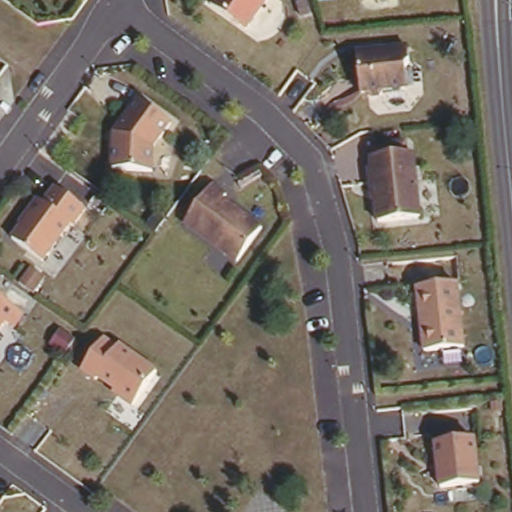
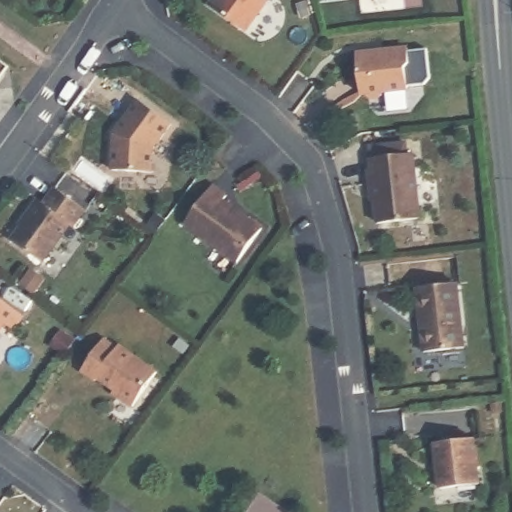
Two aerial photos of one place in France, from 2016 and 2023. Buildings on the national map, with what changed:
unchanged [(212,0),(265,0),(247,25),(212,0)]
unchanged [(408,44),(412,90),(364,97),(359,49),(408,44)]
unchanged [(174,119),(155,146),(156,169),(114,167),(116,128),(140,97),(174,119)]
unchanged [(377,194),(374,194),(373,157),(372,142),(409,136),(412,151),(419,151),(423,213),(379,218),(377,194)]
unchanged [(230,193),(227,200),(261,222),(239,260),(184,225),(212,182),(230,193)]
unchanged [(44,200),(54,185),(88,206),(72,228),(69,226),(47,259),(14,237),(22,227),(18,222),(35,197),(44,200)]
unchanged [(461,279),(467,346),(425,349),(417,285),(461,279)]
unchanged [(15,327),(3,319),(0,324),(0,293),(26,310),(15,327)]
unchanged [(118,345),(119,342),(157,368),(133,402),(118,392),(120,389),(99,373),(96,376),(83,367),(104,336),(118,345)]
unchanged [(474,437),(480,482),(441,487),(436,442),(474,437)]

